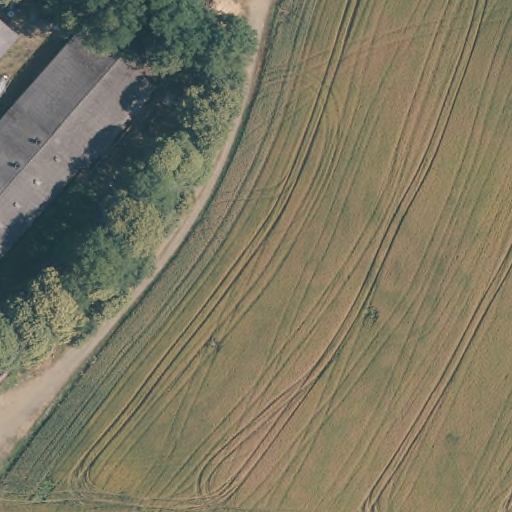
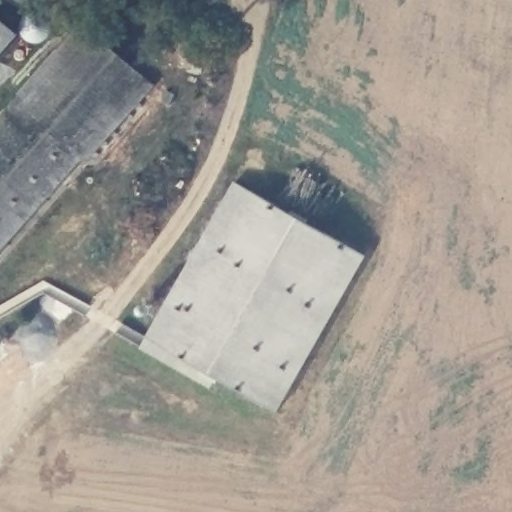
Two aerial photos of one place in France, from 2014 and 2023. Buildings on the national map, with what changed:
unchanged [(18,36),(0,56),(0,20),(18,36)]
unchanged [(94,23),(163,85),(93,161),(87,155),(0,251),(0,125),(94,23)]
new [(276,413),(216,380),(210,388),(141,348),(234,182),(366,257),(276,413)]

